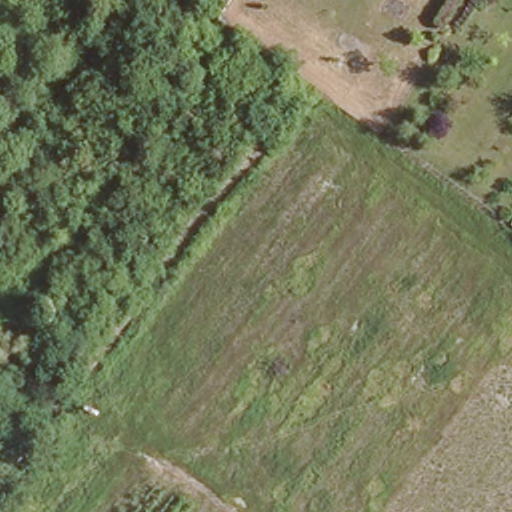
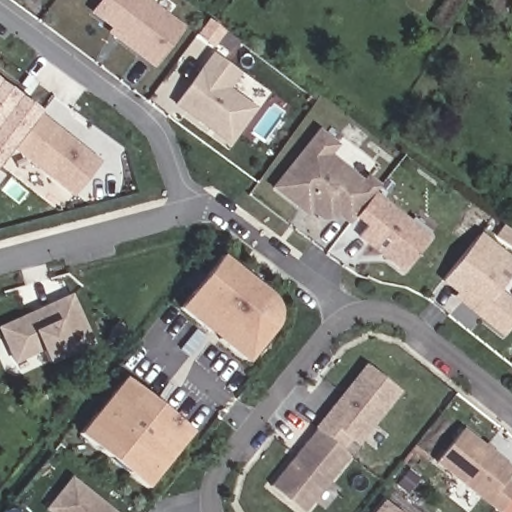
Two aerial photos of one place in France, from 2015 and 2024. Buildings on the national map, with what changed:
new [(93,15),(103,0),(143,0),(185,27),(156,66),(131,49),(121,41),(124,37),(93,15)]
new [(212,52),(238,71),(227,85),(255,106),(231,142),(177,101),(212,52)]
new [(17,150),(11,146),(0,161),(0,82),(40,111),(38,115),(43,117),(17,150)]
new [(102,162),(76,196),(17,150),(43,117),(102,162)]
new [(317,127),(338,145),(331,154),(362,180),(367,173),(380,184),(374,192),(430,235),(401,272),(358,237),(367,225),(354,215),(347,225),(339,216),(326,220),(312,210),(307,217),(271,187),(317,127)]
new [(512,258),(512,271),(499,288),(512,299),(512,322),(502,336),(454,298),(457,294),(442,281),(481,231),(512,258)]
new [(222,254),(271,292),(278,302),(279,318),(274,330),(247,362),(179,307),(222,254)]
new [(52,363),(46,350),(18,362),(3,328),(36,314),(52,306),(73,296),(95,343),(52,363)]
new [(365,363),(400,392),(358,446),(350,440),(342,450),(350,456),(304,511),(271,484),(365,363)]
new [(192,432),(146,488),(79,435),(123,376),(192,432)]
new [(483,444),(484,441),(493,447),(491,450),(512,466),(512,470),(506,478),(512,484),(512,492),(497,512),(434,462),(462,427),(483,444)]
new [(47,512),(44,509),(71,475),(117,512),(47,512)]
new [(398,512),(373,512),(383,500),(398,512)]

